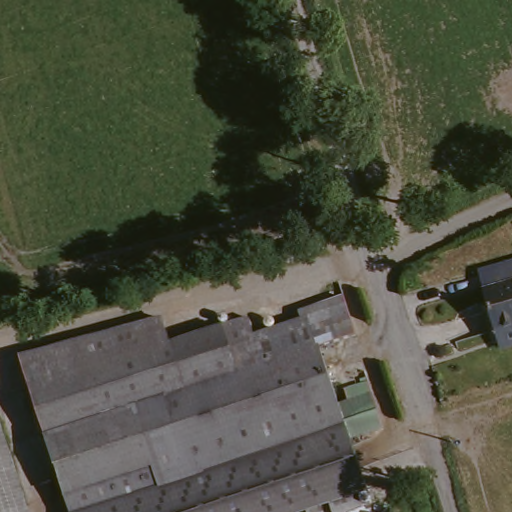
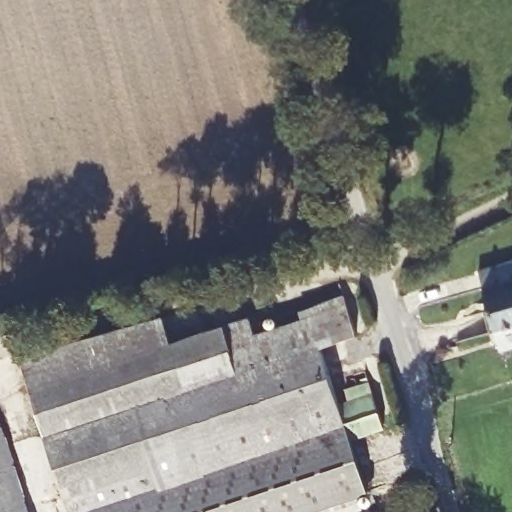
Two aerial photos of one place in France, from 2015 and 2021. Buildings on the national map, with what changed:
unchanged [(486,265),(512,258),(512,344),(509,345),(486,265)]
unchanged [(33,385),(173,340),(250,315),(257,331),(310,313),(330,306),(336,325),(345,322),(349,333),(320,344),(340,400),(372,388),(379,407),(346,420),(369,487),(295,512),(75,512),(69,494),(33,385)]
unchanged [(164,315),(169,327),(173,340),(33,385),(26,364),(23,355),(164,315)]
unchanged [(34,512),(0,512),(0,415),(1,415),(34,512)]

